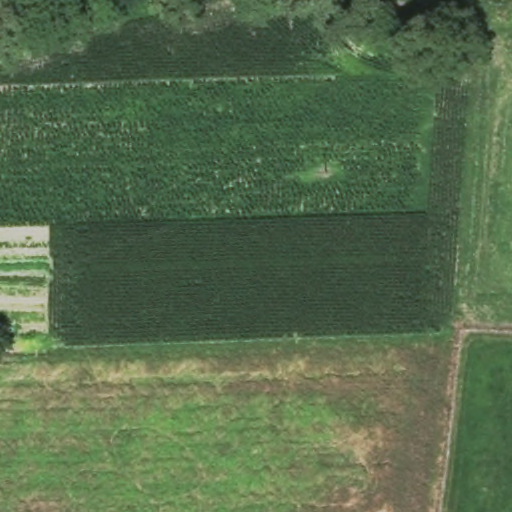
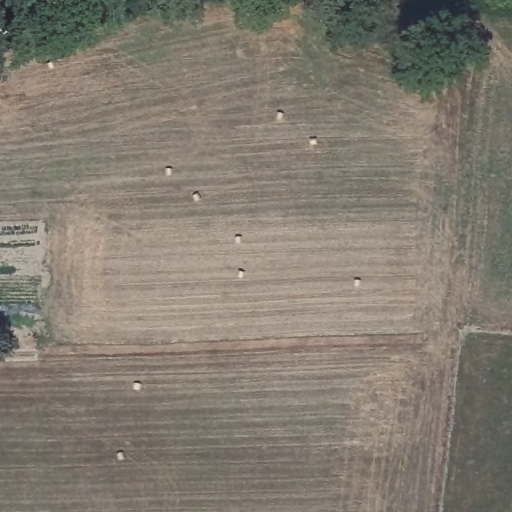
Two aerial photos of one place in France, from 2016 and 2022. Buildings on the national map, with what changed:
[]

